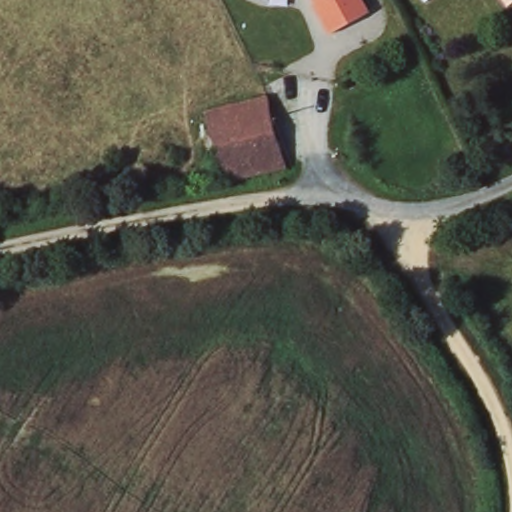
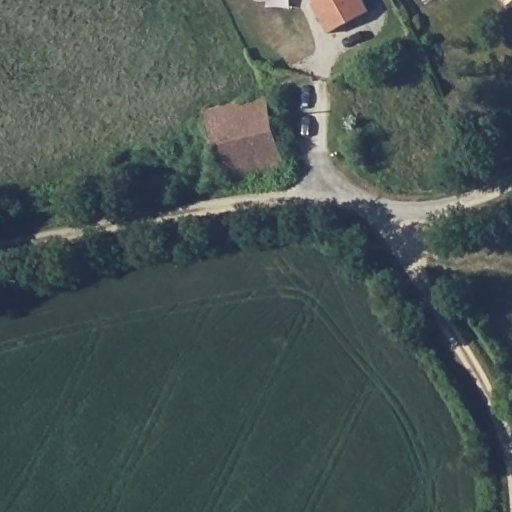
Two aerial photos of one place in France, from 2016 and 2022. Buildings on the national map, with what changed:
unchanged [(364,14),(325,34),(307,0),(357,0),(364,14)]
unchanged [(507,0),(512,0),(512,6),(507,0)]
unchanged [(287,167),(223,182),(204,111),(238,103),(268,95),(287,167)]

